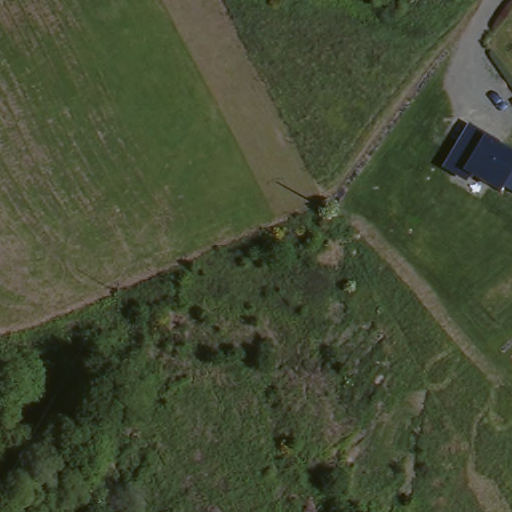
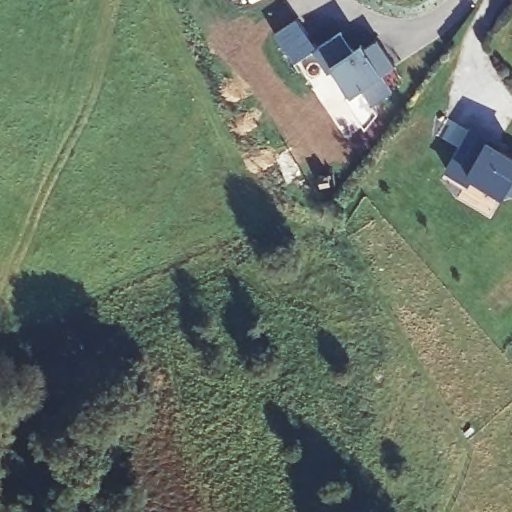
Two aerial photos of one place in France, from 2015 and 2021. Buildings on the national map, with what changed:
new [(347,54),(355,48),(357,52),(371,42),(389,69),(376,78),(387,94),(369,108),(357,91),(346,99),(329,73),(324,77),(308,54),(334,36),(347,54)]
unchanged [(502,146),(512,152),(512,195),(507,193),(505,195),(474,178),(469,186),(444,171),(471,125),(503,143),(502,146)]

